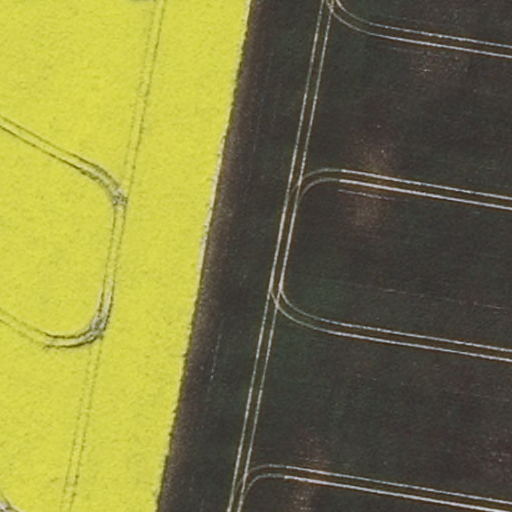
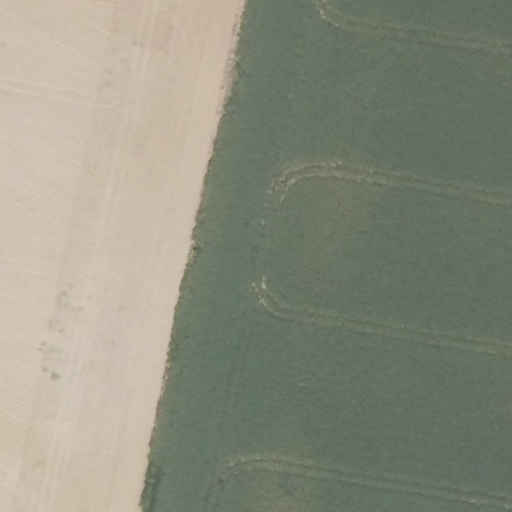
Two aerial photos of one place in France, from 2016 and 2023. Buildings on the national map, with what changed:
[]

